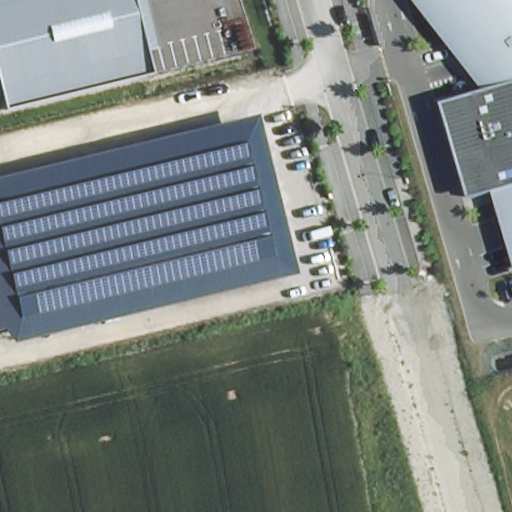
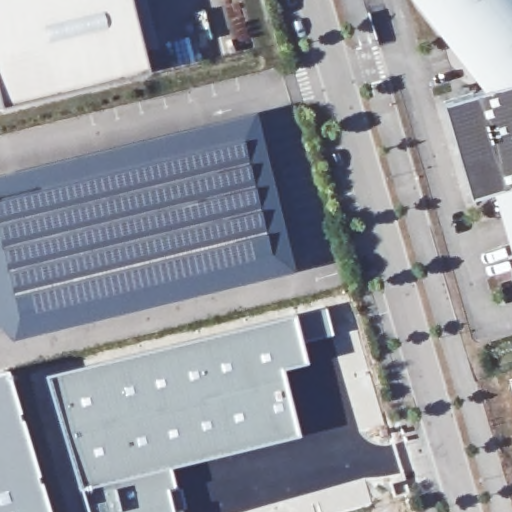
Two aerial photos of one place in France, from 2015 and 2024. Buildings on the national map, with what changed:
unchanged [(156,46),(142,50),(148,73),(0,111),(0,0),(145,0),(156,46)]
unchanged [(512,245),(497,192),(473,198),(445,101),(487,90),(417,0),(512,0),(512,245)]
unchanged [(294,273),(12,341),(2,327),(0,328),(0,178),(255,113),(294,273)]
new [(327,306),(333,336),(302,343),(294,313),(327,306)]
new [(294,313),(302,343),(307,365),(283,370),(299,437),(170,468),(139,474),(74,490),(42,375),(294,313)]
new [(43,487),(50,512),(0,512),(0,369),(6,367),(43,487)]
new [(170,468),(175,488),(169,489),(175,511),(181,509),(182,512),(81,512),(74,490),(139,474),(170,468)]

